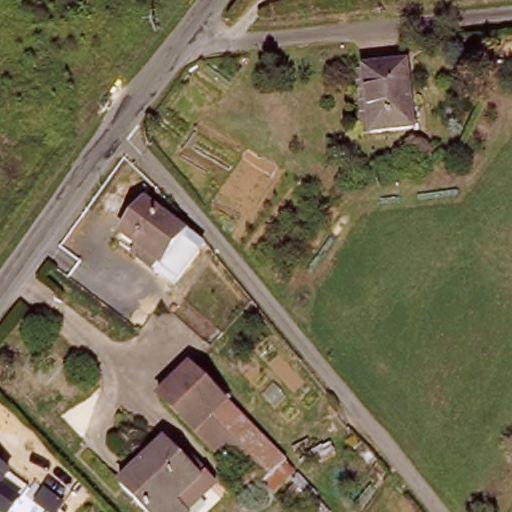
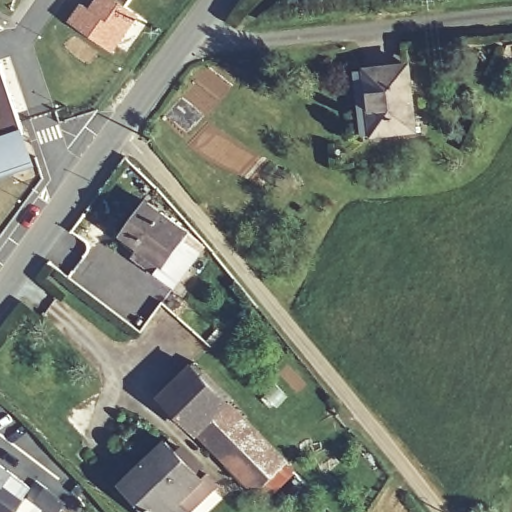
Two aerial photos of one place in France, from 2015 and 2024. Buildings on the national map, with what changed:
new [(84,3),(94,10),(98,5),(95,2),(96,0),(130,0),(127,5),(139,12),(112,50),(70,21),(84,3)]
new [(27,134),(17,137),(26,165),(0,173),(0,64),(4,63),(27,134)]
unchanged [(412,65),(419,127),(365,132),(359,70),(412,65)]
new [(17,137),(27,134),(39,167),(0,180),(0,173),(26,165),(17,137)]
unchanged [(189,236),(185,241),(200,255),(174,288),(141,264),(145,255),(124,240),(150,205),(189,236)]
unchanged [(162,398),(191,368),(227,403),(197,433),(162,398)]
unchanged [(227,403),(285,461),(255,491),(197,433),(227,403)]
unchanged [(185,512),(152,512),(124,483),(165,443),(203,481),(179,506),(185,512)]
unchanged [(23,498),(13,512),(7,512),(0,507),(0,461),(12,470),(2,483),(23,498)]

